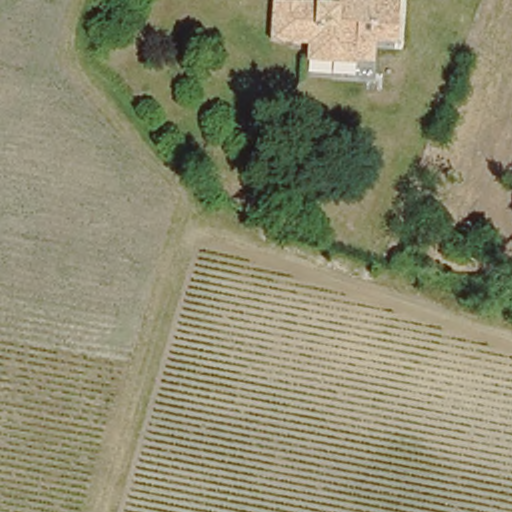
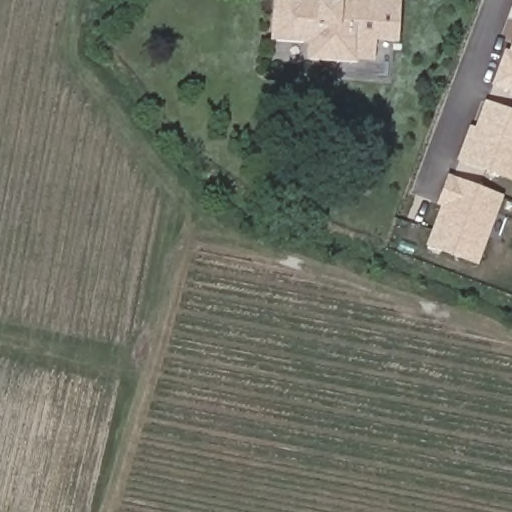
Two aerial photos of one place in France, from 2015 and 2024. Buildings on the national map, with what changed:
unchanged [(310,57),(311,42),(272,40),(274,0),(294,0),(341,2),(341,0),(402,0),(400,43),(377,42),(376,61),(358,60),(310,57)]
new [(491,86),(505,49),(509,51),(512,42),(512,94),(491,86)]
new [(457,160),(470,127),(475,128),(485,102),(512,112),(512,181),(457,160)]
new [(442,205),(438,204),(447,178),(499,197),(474,264),(428,247),(442,205)]

